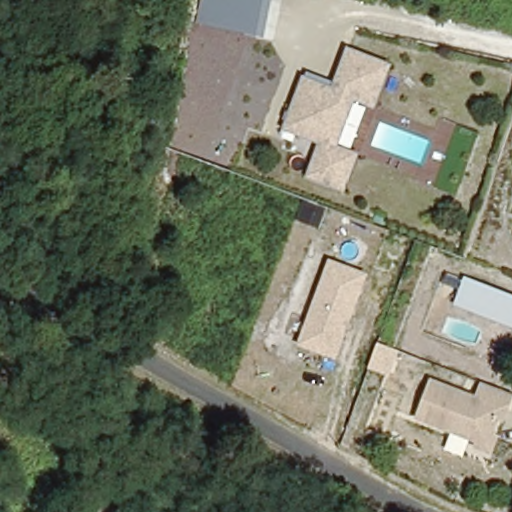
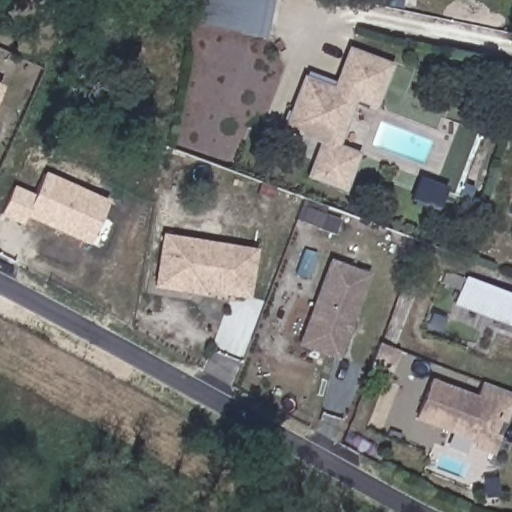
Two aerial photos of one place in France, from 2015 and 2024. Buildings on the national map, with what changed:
unchanged [(198,21),(202,0),(272,0),(265,36),(198,21)]
unchanged [(331,187),(301,175),(312,139),(277,127),(297,78),(328,90),(342,50),(377,62),(361,103),(344,151),(331,187)]
new [(0,92),(0,84),(3,85),(0,92)]
new [(87,243),(28,214),(22,224),(1,214),(14,185),(35,195),(44,171),(107,200),(87,243)]
new [(204,291),(204,295),(155,288),(164,234),(256,248),(248,298),(204,291)]
unchanged [(336,359),(297,346),(328,259),(368,274),(336,359)]
unchanged [(512,327),(455,305),(466,276),(512,294),(512,327)]
unchanged [(512,394),(512,408),(507,424),(500,421),(496,435),(501,435),(493,454),(474,447),(476,442),(470,440),(465,456),(445,449),(451,434),(417,420),(432,379),(477,395),(482,381),(512,394)]

